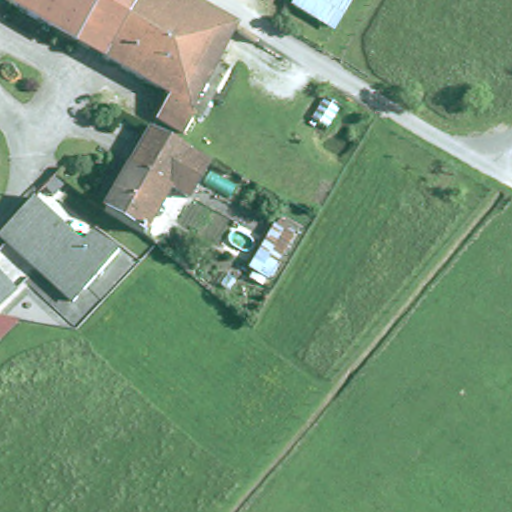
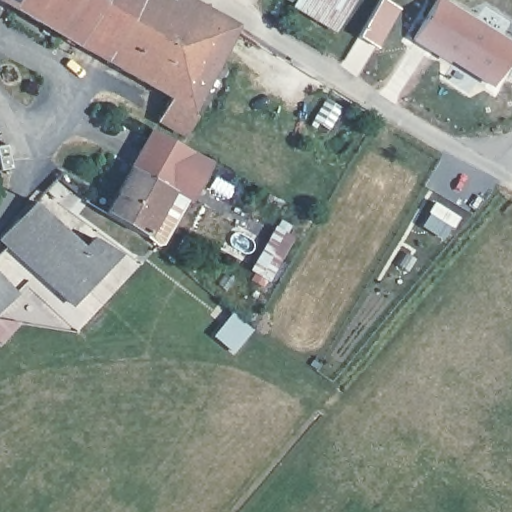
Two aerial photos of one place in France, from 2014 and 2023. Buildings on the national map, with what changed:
unchanged [(0,6),(0,0),(17,0),(10,12),(0,6)]
unchanged [(10,12),(17,0),(101,0),(73,49),(10,12)]
unchanged [(73,49),(101,0),(140,0),(103,65),(73,49)]
unchanged [(224,51),(187,118),(193,122),(183,141),(156,125),(168,101),(103,65),(140,0),(177,0),(256,46),(248,59),(245,64),(224,51)]
unchanged [(345,0),(330,25),(291,4),(293,0),(345,0)]
new [(386,0),(400,9),(377,48),(357,37),(379,0),(386,0)]
new [(445,0),(512,43),(512,53),(492,88),(449,61),(447,64),(412,41),(437,0),(445,0)]
unchanged [(325,99),(339,107),(325,129),(310,120),(325,99)]
unchanged [(168,195),(142,241),(103,218),(150,135),(209,166),(197,186),(187,204),(168,195)]
unchanged [(90,236),(117,254),(72,304),(0,238),(0,235),(12,223),(32,202),(62,228),(83,249),(90,236)]
new [(434,202),(460,218),(454,229),(428,212),(434,202)]
unchanged [(290,236),(267,279),(250,269),(275,227),(290,236)]
unchanged [(0,306),(0,268),(20,288),(0,306)]
unchanged [(231,280),(223,290),(216,284),(223,274),(231,280)]
new [(212,335),(231,311),(252,330),(233,353),(212,335)]
new [(0,347),(0,317),(24,321),(0,347)]

